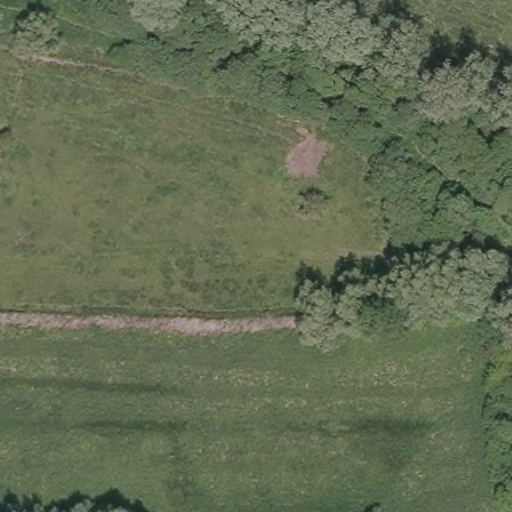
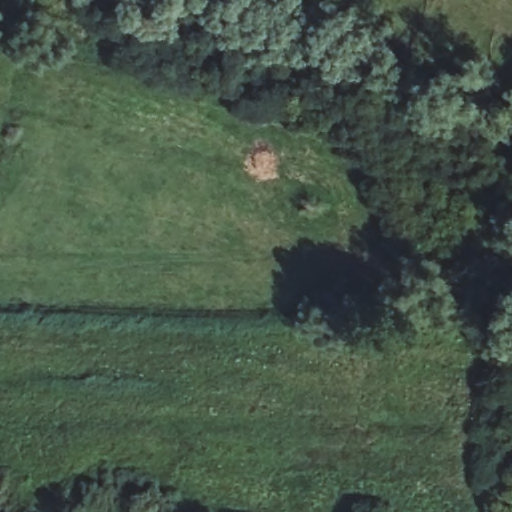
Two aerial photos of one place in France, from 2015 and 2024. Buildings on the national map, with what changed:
[]

